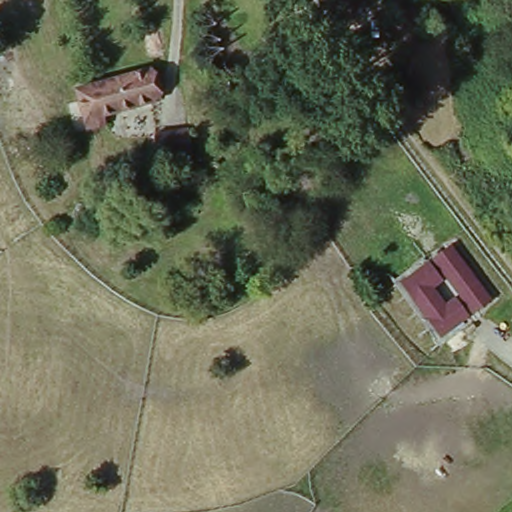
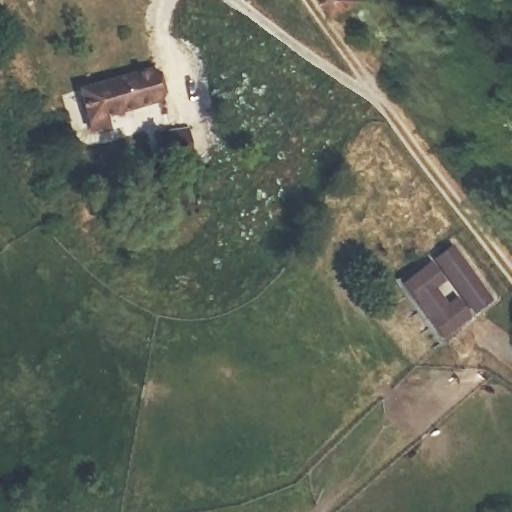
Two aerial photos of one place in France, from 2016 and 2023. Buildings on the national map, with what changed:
unchanged [(343,16),(332,0),(370,0),(372,1),(343,16)]
unchanged [(151,76),(164,118),(106,137),(110,149),(91,155),(71,95),(151,76)]
unchanged [(497,295),(442,337),(398,278),(454,241),(497,295)]

